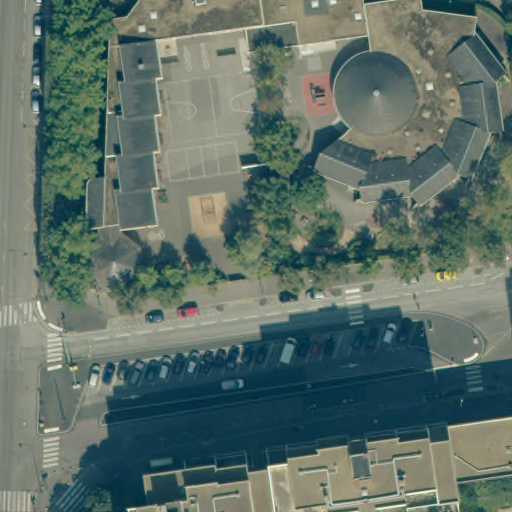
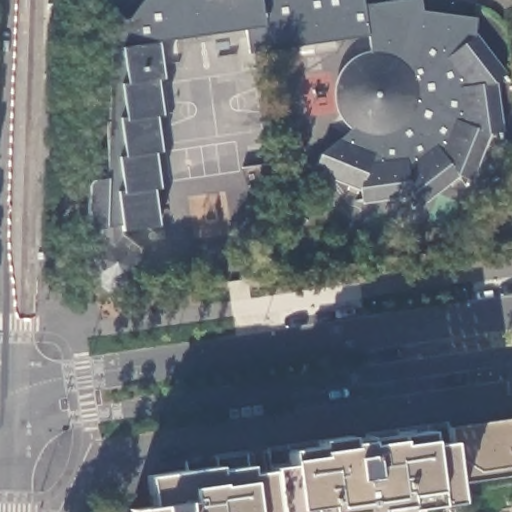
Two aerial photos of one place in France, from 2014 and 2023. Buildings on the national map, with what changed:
unchanged [(160,76),(153,78),(159,115),(153,115),(159,152),(153,153),(159,188),(154,189),(158,225),(121,231),(120,225),(110,226),(96,229),(93,229),(92,229),(91,229),(90,228),(89,227),(89,226),(88,226),(88,225),(87,225),(88,184),(89,183),(89,182),(89,181),(90,181),(90,180),(91,179),(92,179),(92,178),(93,178),(94,178),(102,176),(105,18),(95,9),(95,0),(248,0),(245,25),(154,39),(160,76)]
unchanged [(360,0),(360,3),(376,0),(416,0),(418,8),(471,14),(468,32),(498,72),(490,80),(496,130),(484,130),(465,178),(453,174),(415,204),(405,193),(355,200),(355,189),(306,172),(310,158),(341,134),(352,124),(351,124),(350,123),(349,123),(347,121),(346,121),(343,118),(341,116),(340,114),(338,112),(337,110),(335,106),(335,105),(334,104),(333,104),(333,103),(333,101),(332,100),(332,98),(332,96),(332,95),(331,95),(331,92),(331,88),(331,86),(332,84),(332,83),(332,81),(333,79),(333,77),(333,76),(334,75),(335,74),(335,73),(335,71),(336,71),(336,70),(336,69),(337,69),(338,67),(340,65),(340,64),(341,63),(342,61),(344,60),(346,58),(347,57),(348,56),(350,55),(351,54),(353,53),(354,52),(355,52),(355,51),(357,51),(358,51),(360,50),(362,49),(366,48),(367,48),(365,30),(293,43),(291,18),(245,25),(248,0),(360,0)]
unchanged [(136,241),(142,262),(130,280),(109,286),(92,274),(87,254),(97,236),(96,229),(110,226),(120,225),(121,231),(136,241)]
unchanged [(512,410),(512,470),(504,472),(501,472),(479,475),(456,479),(441,420),(482,414),(496,412),(512,410)]
unchanged [(130,502),(131,502),(154,499),(150,469),(187,464),(185,455),(441,420),(456,479),(456,483),(457,492),(407,497),(409,509),(381,512),(329,512),(328,509),(303,512),(132,512),(130,502)]

